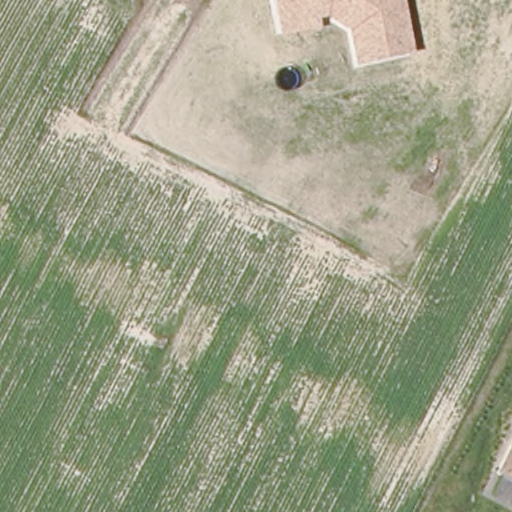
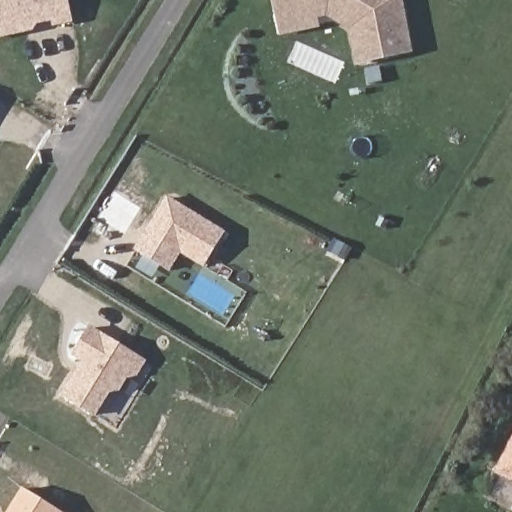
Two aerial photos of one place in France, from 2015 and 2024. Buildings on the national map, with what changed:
new [(0,35),(0,0),(66,0),(70,20),(54,23),(52,17),(36,21),(32,28),(24,30),(0,35)]
unchanged [(412,52),(354,65),(347,30),(327,16),(318,17),(320,27),(279,35),(272,0),(402,0),(412,52)]
new [(154,218),(166,199),(221,233),(201,265),(178,251),(167,269),(135,249),(147,230),(154,218)]
new [(73,356),(90,329),(132,354),(144,362),(135,376),(126,378),(119,390),(108,392),(94,415),(62,396),(84,361),(73,356)]
unchanged [(495,478),(512,445),(512,487),(495,478)]
new [(58,509),(63,512),(6,512),(22,486),(58,509)]

